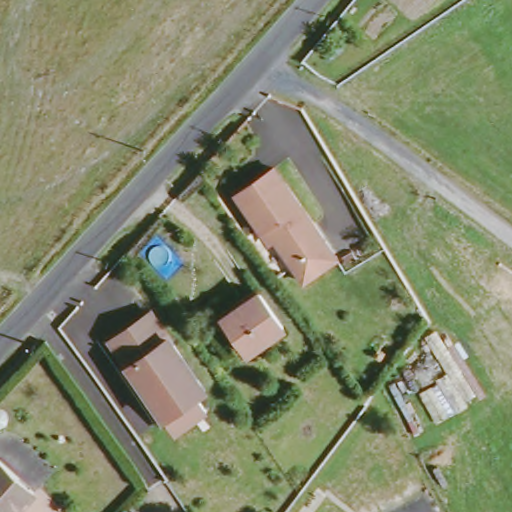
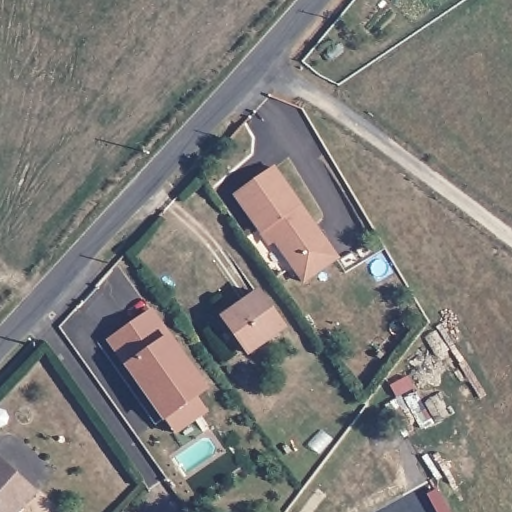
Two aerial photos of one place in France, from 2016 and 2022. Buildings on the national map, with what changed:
unchanged [(274,239),(270,242),(262,230),(260,231),(234,195),(271,167),(336,256),(303,280),(274,239)]
unchanged [(222,317),(257,292),(282,327),(248,352),(222,317)]
unchanged [(167,434),(141,401),(100,344),(140,315),(196,390),(188,397),(198,412),(167,434)]
unchanged [(11,512),(0,512),(0,460),(32,487),(11,512)]

